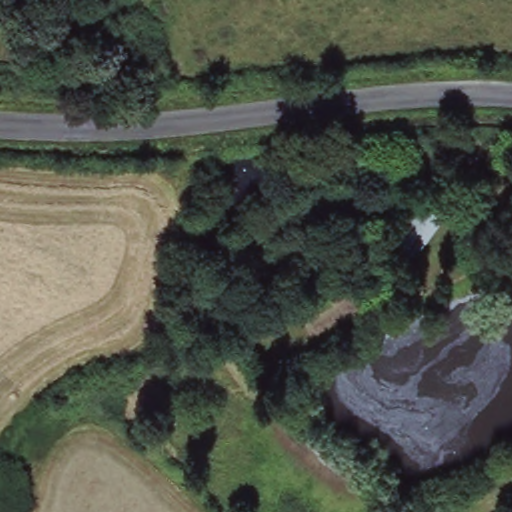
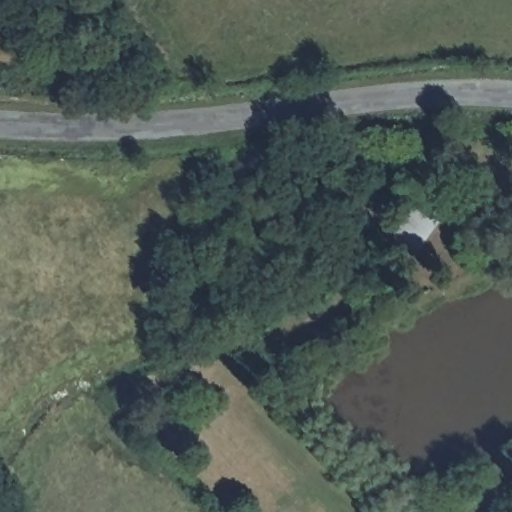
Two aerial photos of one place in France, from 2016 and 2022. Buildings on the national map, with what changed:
unchanged [(418,239),(407,253),(394,243),(424,202),(445,217),(425,245),(418,239)]

